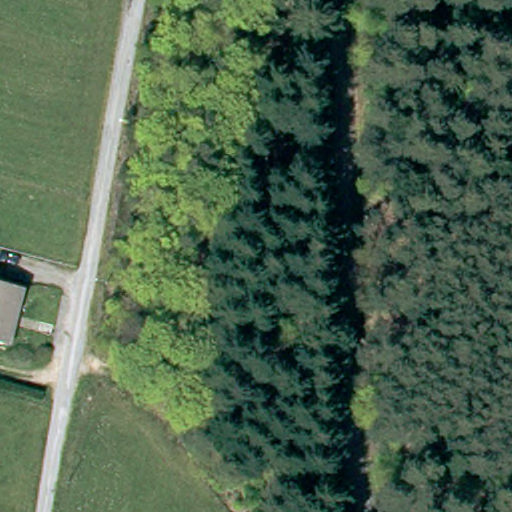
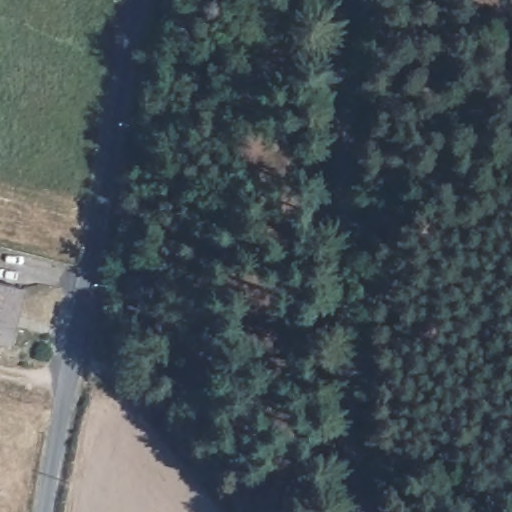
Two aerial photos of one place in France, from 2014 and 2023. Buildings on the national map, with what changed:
unchanged [(0,341),(0,280),(16,284),(3,342),(0,341)]

